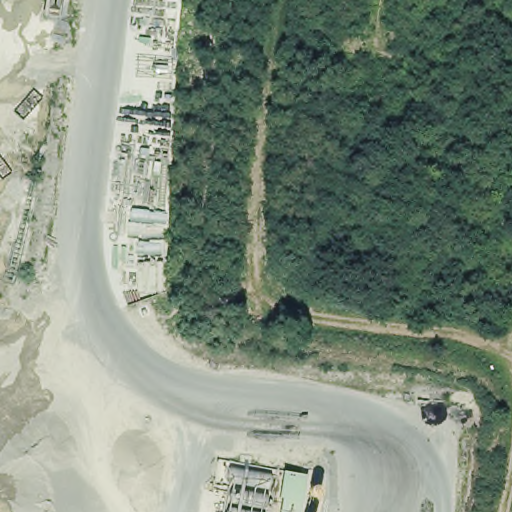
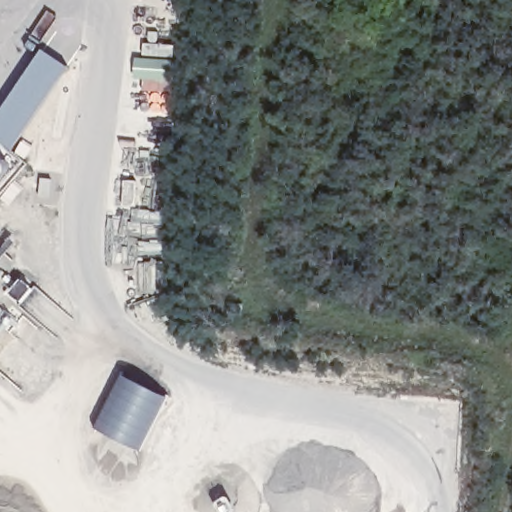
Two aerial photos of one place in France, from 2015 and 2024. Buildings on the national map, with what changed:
new [(65,70),(9,154),(0,147),(0,110),(39,53),(65,70)]
new [(179,60),(179,81),(159,81),(159,94),(128,92),(129,79),(133,79),(133,59),(179,60)]
new [(121,372),(166,396),(139,449),(93,425),(121,372)]
new [(303,512),(279,512),(281,501),(277,499),(282,471),(309,474),(303,512)]

